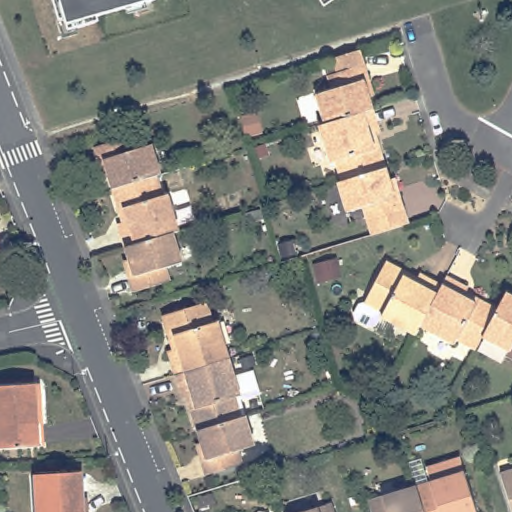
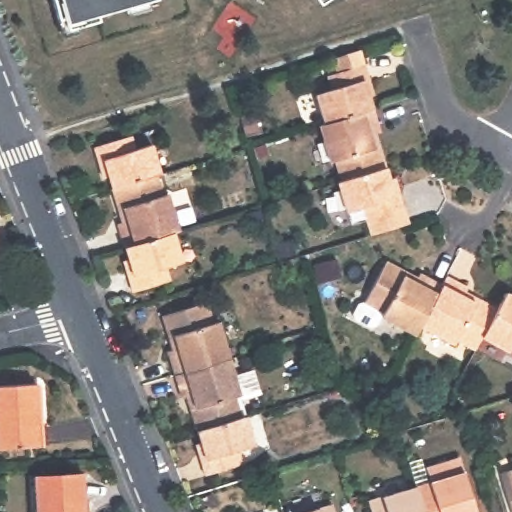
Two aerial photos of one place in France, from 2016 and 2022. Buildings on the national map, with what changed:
unchanged [(95,14),(97,20),(66,28),(63,17),(57,18),(52,0),(145,0),(95,14)]
unchanged [(335,90),(331,75),(333,74),(341,72),(336,58),(365,49),(370,63),(374,77),(376,82),(380,95),(373,97),(377,108),(327,123),(319,94),(335,90)]
unchanged [(335,161),(324,124),(327,123),(377,108),(384,132),(380,133),(383,144),(390,167),(346,180),(339,160),(335,161)]
unchanged [(100,146),(137,135),(141,148),(156,143),(166,173),(162,174),(117,188),(114,176),(109,178),(106,166),(104,161),(100,146)]
unchanged [(367,205),(351,210),(342,182),(346,180),(390,167),(393,179),(399,177),(403,190),(405,195),(409,208),(413,223),(377,234),(372,220),(367,205)]
unchanged [(117,188),(162,174),(168,195),(172,194),(184,231),(177,232),(130,247),(122,223),(127,222),(124,210),(117,188)]
unchanged [(129,260),(134,259),(130,247),(177,232),(186,262),(171,266),(175,281),(139,292),(134,277),(132,272),(129,260)]
unchanged [(0,263),(0,242),(7,260),(0,263)]
unchanged [(375,331),(360,322),(358,316),(363,307),(368,306),(375,293),(391,265),(411,275),(422,281),(423,278),(446,290),(423,331),(418,340),(385,320),(380,329),(375,331)]
unchanged [(446,290),(450,282),(472,293),(471,297),(482,302),(502,314),(487,342),(480,354),(461,344),(458,348),(423,331),(446,290)]
unchanged [(487,342),(502,314),(510,298),(512,299),(512,356),(487,342)]
unchanged [(161,316),(207,302),(212,322),(216,321),(228,358),(175,375),(167,351),(172,349),(168,338),(161,316)]
unchanged [(182,399),(175,375),(228,358),(239,395),(234,397),(240,417),(196,431),(190,409),(187,397),(182,399)]
unchanged [(37,424),(42,424),(44,445),(0,448),(0,387),(35,384),(37,424)]
unchanged [(195,444),(200,442),(196,431),(240,417),(245,416),(254,444),(237,449),(242,464),(205,476),(200,461),(199,456),(195,444)]
unchanged [(435,482),(430,467),(463,457),(480,512),(428,512),(420,486),(435,482)]
unchanged [(271,471),(281,468),(285,480),(275,483),(271,471)]
unchanged [(41,512),(39,476),(87,473),(89,512),(41,512)]
unchanged [(512,473),(512,480),(510,474),(512,473)]
unchanged [(420,486),(428,512),(375,512),(372,501),(420,486)]
unchanged [(197,500),(212,495),(216,506),(201,510),(197,500)]
unchanged [(346,498),(350,512),(343,512),(339,500),(346,498)]
unchanged [(339,512),(314,512),(337,505),(339,512)]

